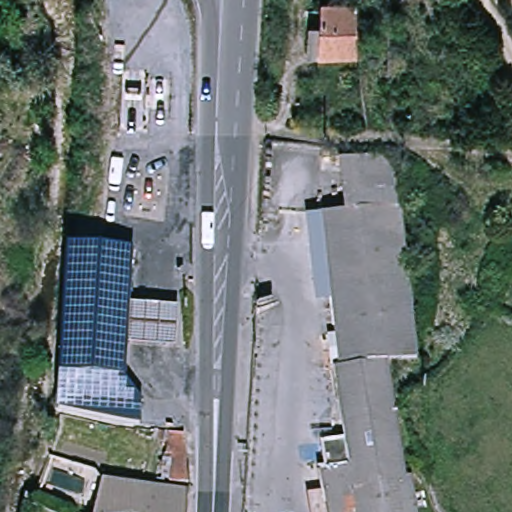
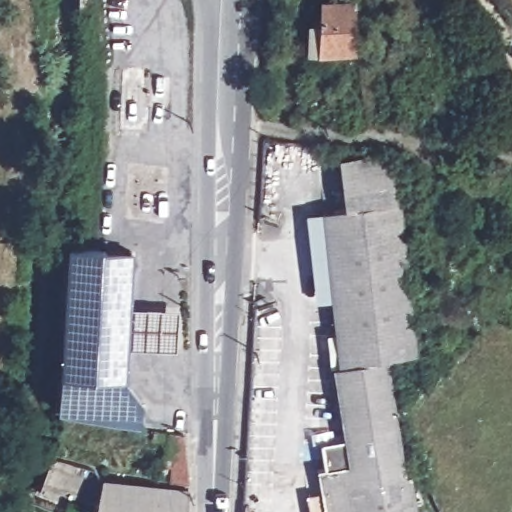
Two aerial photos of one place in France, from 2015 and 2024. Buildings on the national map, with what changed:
unchanged [(349,52),(327,52),(329,25),(354,25),(349,52)]
unchanged [(353,50),(344,77),(328,73),(349,52),(353,50)]
unchanged [(336,168),(390,162),(397,205),(344,214),(336,168)]
unchanged [(347,371),(323,217),(344,214),(397,205),(420,359),(400,361),(415,478),(424,477),(429,512),(330,512),(324,470),(329,470),(325,444),(351,440),(342,371),(347,371)]
unchanged [(71,246),(133,252),(129,301),(125,344),(123,377),(143,393),(141,416),(58,411),(71,246)]
unchanged [(165,347),(125,344),(129,301),(169,305),(165,347)]
unchanged [(161,427),(183,428),(195,481),(155,477),(161,427)]
unchanged [(109,482),(196,488),(194,512),(102,512),(109,482)]

